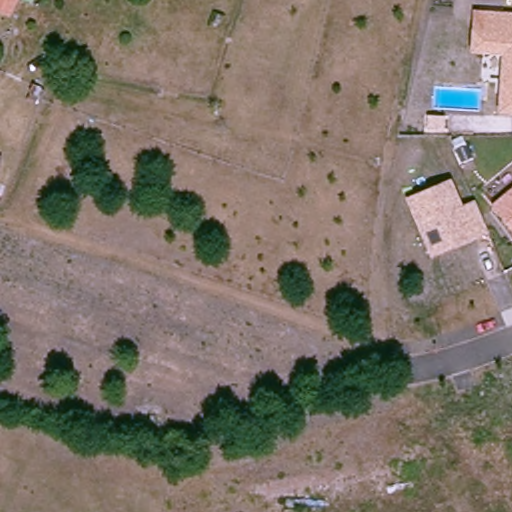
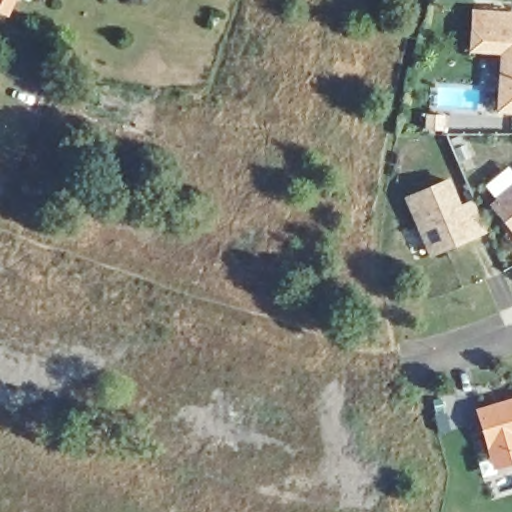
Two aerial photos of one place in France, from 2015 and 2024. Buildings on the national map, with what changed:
unchanged [(0,0),(15,0),(10,11),(0,6),(0,0)]
unchanged [(498,113),(501,55),(470,54),(472,9),(512,14),(512,114),(498,113)]
unchanged [(0,186),(0,165),(5,167),(0,186)]
unchanged [(449,177),(461,206),(475,201),(488,234),(430,259),(405,199),(449,177)]
unchanged [(491,206),(512,187),(512,232),(491,206)]
new [(446,395),(453,430),(437,433),(430,398),(446,395)]
new [(512,397),(512,465),(490,471),(473,407),(512,397)]

